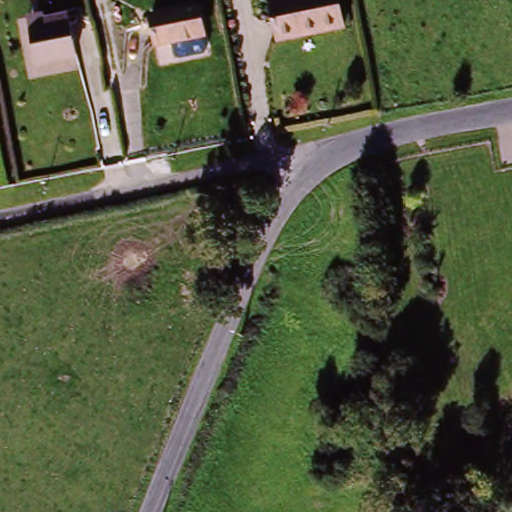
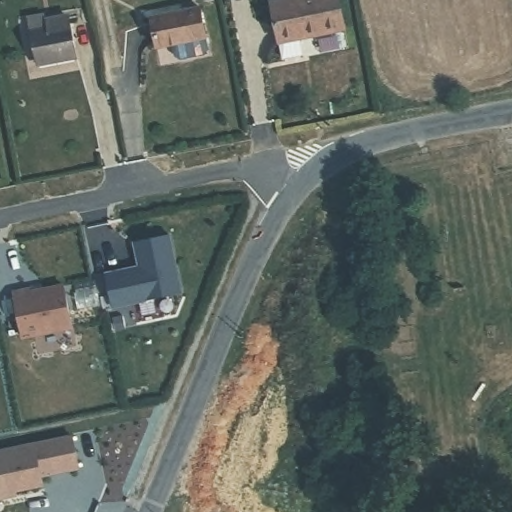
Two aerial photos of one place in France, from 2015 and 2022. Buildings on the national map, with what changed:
unchanged [(335,22),(272,35),(265,0),(331,0),(335,22)]
unchanged [(203,11),(207,38),(160,46),(156,18),(203,11)]
unchanged [(73,60),(27,62),(25,36),(41,36),(42,20),(70,19),(73,60)]
new [(122,270),(123,272),(141,268),(136,241),(171,234),(182,292),(113,306),(106,272),(122,270)]
new [(30,285),(31,289),(65,281),(76,327),(22,339),(12,290),(30,285)]
new [(0,499),(0,453),(75,439),(80,471),(42,477),(44,487),(16,492),(16,496),(6,497),(0,499)]

